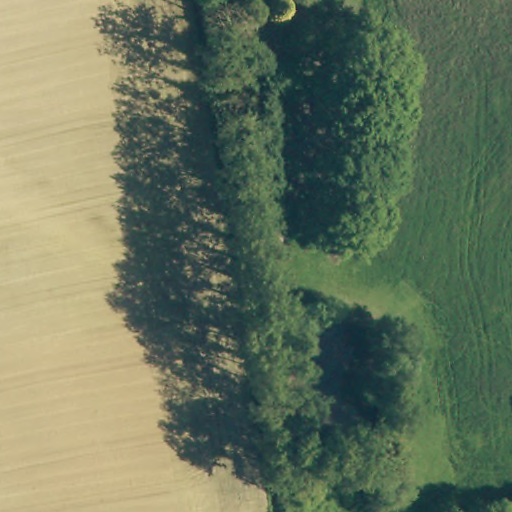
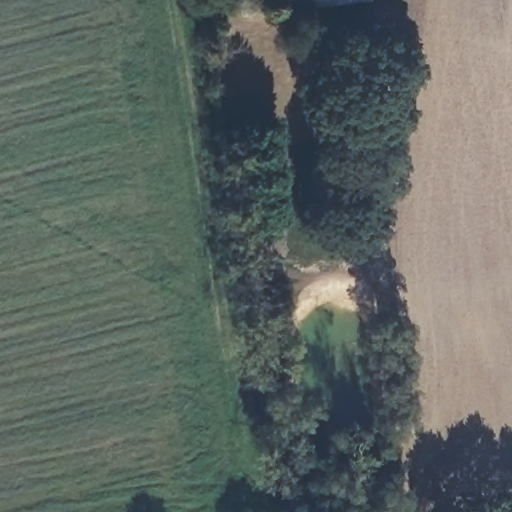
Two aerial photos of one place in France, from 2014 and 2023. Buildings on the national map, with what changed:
unchanged [(230,0),(265,0),(231,7),(230,0)]

